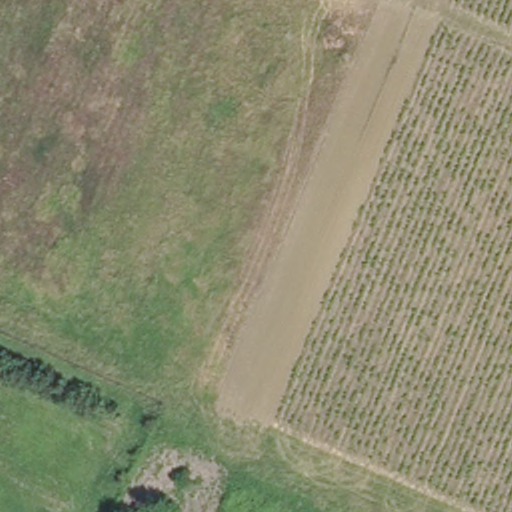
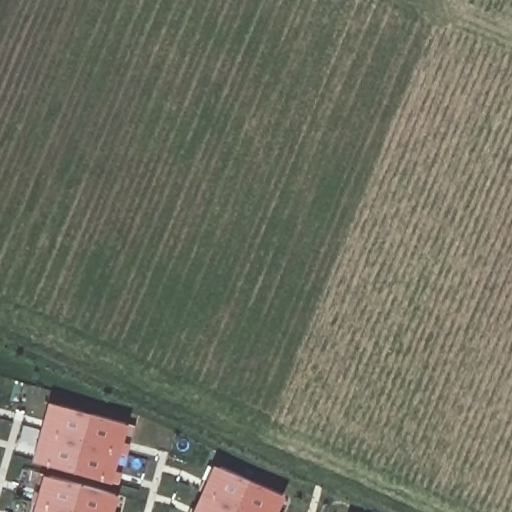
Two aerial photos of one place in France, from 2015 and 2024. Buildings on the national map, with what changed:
new [(124,423),(109,482),(28,461),(43,402),(124,423)]
new [(281,494),(272,512),(190,512),(211,464),(281,494)]
new [(112,495),(108,512),(27,512),(37,475),(112,495)]

